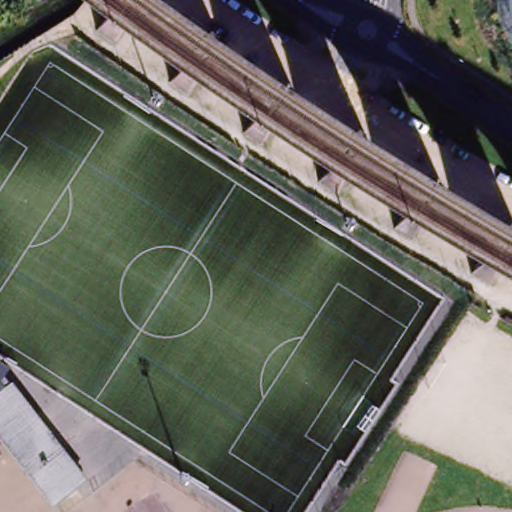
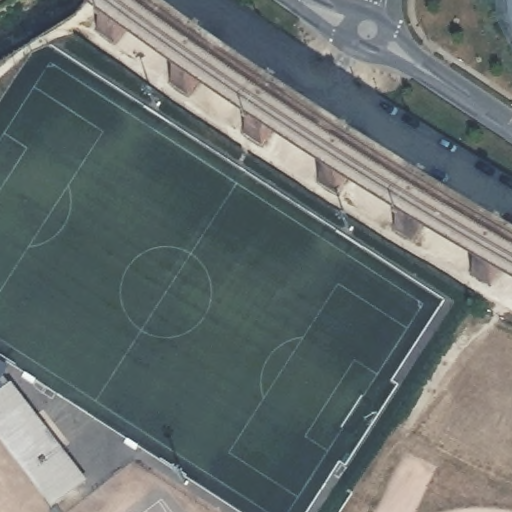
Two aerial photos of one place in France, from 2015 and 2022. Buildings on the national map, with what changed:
unchanged [(503,7),(502,0),(512,0),(512,32),(503,7)]
unchanged [(0,378),(0,371),(3,373),(0,378)]
unchanged [(78,485),(50,506),(0,441),(0,395),(6,391),(78,485)]

